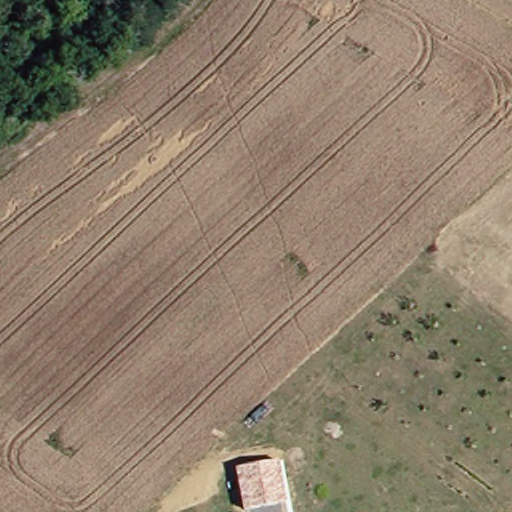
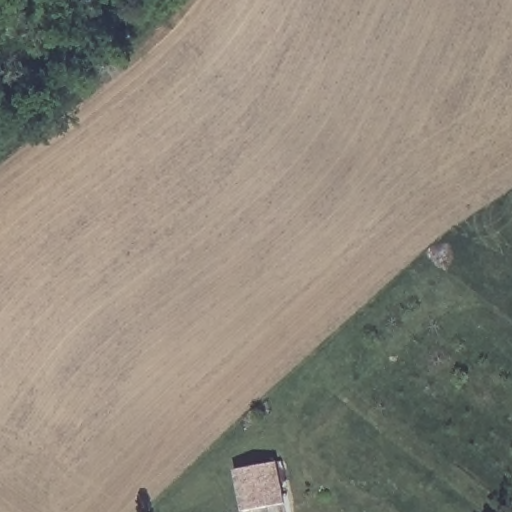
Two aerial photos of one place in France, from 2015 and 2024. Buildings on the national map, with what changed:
unchanged [(242,512),(235,468),(277,461),(285,504),(242,512)]

